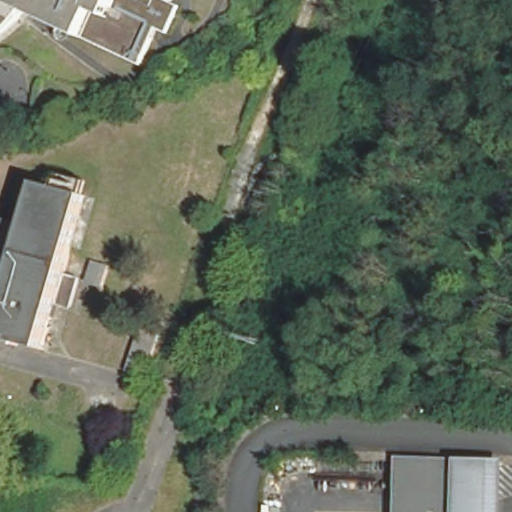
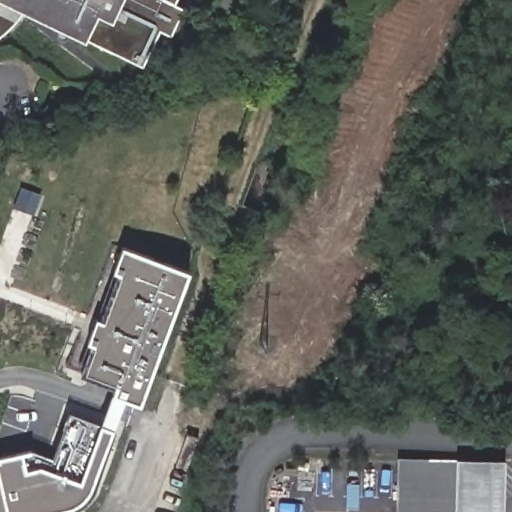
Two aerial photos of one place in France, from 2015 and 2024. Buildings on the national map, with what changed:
unchanged [(179,7),(186,10),(174,38),(159,32),(145,68),(86,40),(27,15),(23,21),(13,32),(1,42),(0,42),(0,0),(181,0),(179,7)]
demolished [(16,264),(27,223),(39,180),(57,186),(85,194),(89,195),(46,349),(0,336),(0,321),(1,320),(0,319),(0,260),(16,264)]
new [(142,404),(114,394),(116,387),(80,374),(92,340),(88,338),(95,319),(99,320),(116,273),(112,272),(122,246),(190,271),(142,404)]
demolished [(105,291),(85,285),(94,259),(112,264),(105,291)]
demolished [(157,343),(144,378),(126,371),(139,337),(157,343)]
new [(21,453),(32,450),(52,457),(69,411),(102,424),(114,428),(97,477),(91,489),(82,500),(71,506),(45,512),(0,512),(0,458),(21,453)]
unchanged [(397,512),(398,463),(453,464),(452,512),(397,512)]
unchanged [(498,512),(452,512),(453,464),(498,465),(498,512)]

